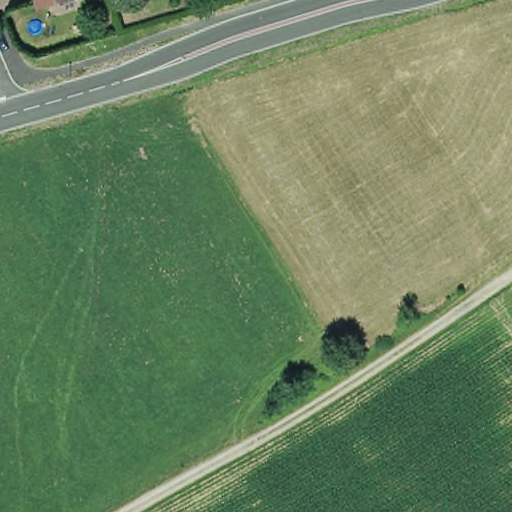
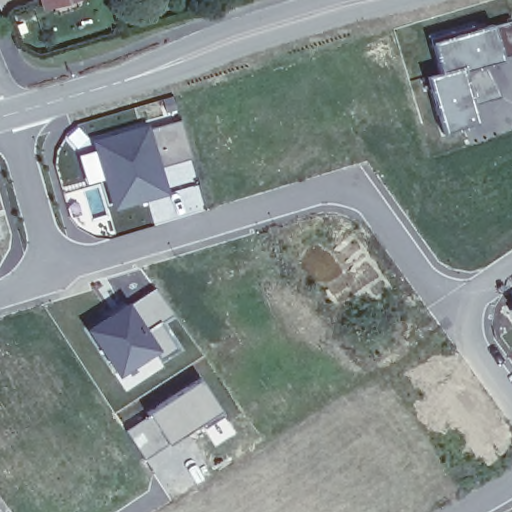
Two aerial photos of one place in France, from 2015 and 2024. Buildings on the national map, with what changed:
new [(501,97),(476,103),(480,124),(445,132),(432,77),(444,74),(436,41),(512,22),(512,55),(487,65),(501,97)]
new [(152,123),(154,128),(182,120),(192,157),(161,166),(171,195),(114,210),(95,142),(152,123)]
new [(2,232),(0,232),(0,226),(2,232)]
new [(129,301),(154,287),(171,312),(159,320),(173,344),(117,376),(85,327),(128,299),(129,301)]
new [(149,416),(147,412),(202,377),(222,411),(144,461),(124,432),(149,416)]

